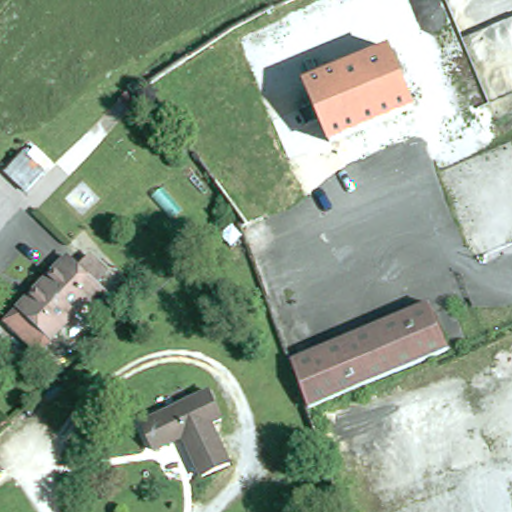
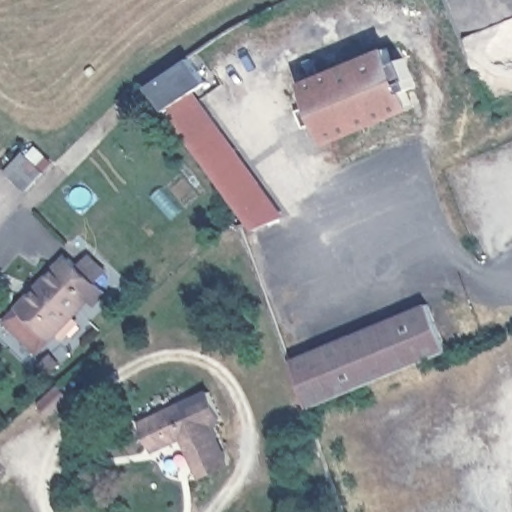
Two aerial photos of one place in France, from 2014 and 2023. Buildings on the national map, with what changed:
unchanged [(389,49),(414,110),(331,144),(306,82),(389,49)]
new [(254,229),(165,109),(148,85),(189,57),(207,82),(194,90),(285,215),(254,229)]
demolished [(220,188),(240,174),(263,205),(267,216),(246,224),(220,188)]
unchanged [(94,303),(88,297),(39,347),(9,319),(62,265),(64,268),(74,259),(81,266),(91,256),(109,273),(99,284),(106,291),(94,303)]
unchanged [(308,390),(296,358),(434,303),(452,350),(313,406),(308,390)]
unchanged [(52,357),(61,367),(52,375),(43,365),(52,357)]
unchanged [(207,395),(219,422),(208,427),(227,468),(199,480),(181,440),(152,453),(139,426),(207,395)]
unchanged [(1,467),(0,467),(0,466),(1,467)]

